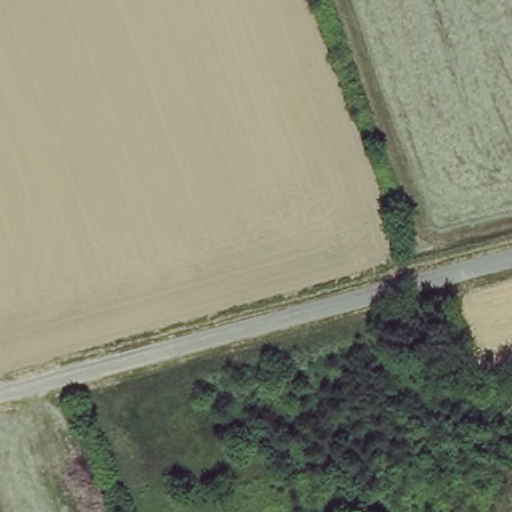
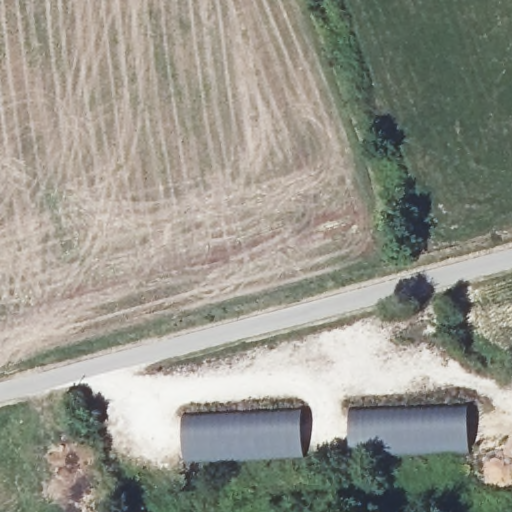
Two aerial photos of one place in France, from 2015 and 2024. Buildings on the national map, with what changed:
new [(468,407),(471,452),(351,453),(349,408),(468,407)]
new [(304,455),(183,466),(181,416),(300,409),(304,455)]

